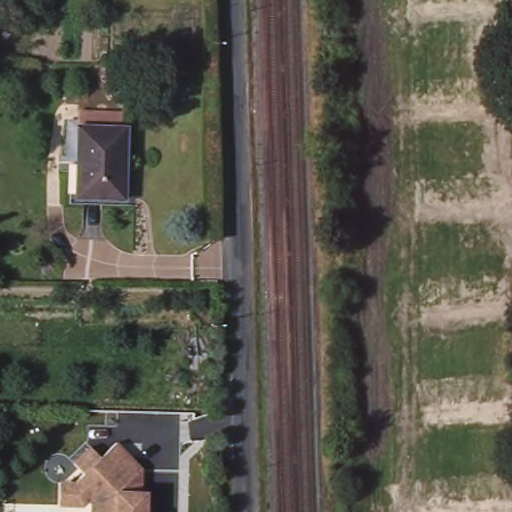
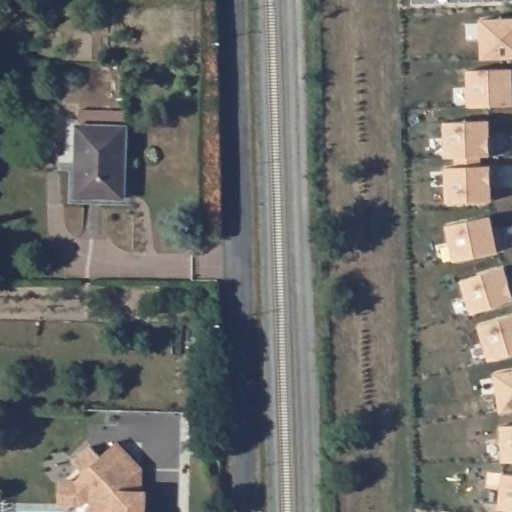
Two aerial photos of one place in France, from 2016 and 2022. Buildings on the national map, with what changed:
new [(480,20),(512,18),(512,58),(481,60),(480,20)]
new [(466,71),(512,69),(512,106),(467,108),(466,71)]
new [(443,124),(490,121),(490,135),(496,135),(498,187),(492,189),(493,202),(445,204),(443,124)]
unchanged [(74,126),(123,128),(122,169),(120,169),(118,200),(76,198),(77,164),(72,164),(74,126)]
new [(447,225),(491,217),(493,230),(500,228),(505,251),(498,252),(454,262),(447,225)]
new [(461,280),(503,267),(512,293),(512,303),(473,315),(461,280)]
new [(478,327),(512,316),(512,355),(489,362),(478,327)]
new [(495,375),(512,371),(512,412),(501,414),(495,375)]
new [(501,426),(512,425),(512,463),(502,463),(501,426)]
unchanged [(99,496),(97,495),(90,501),(65,500),(66,477),(81,478),(91,469),(81,458),(99,442),(108,452),(124,438),(149,465),(148,488),(153,488),(153,512),(98,512),(99,496)]
new [(501,475),(512,475),(512,512),(498,512),(501,475)]

